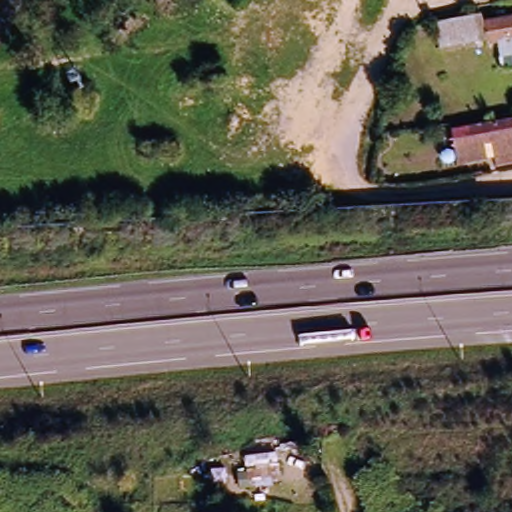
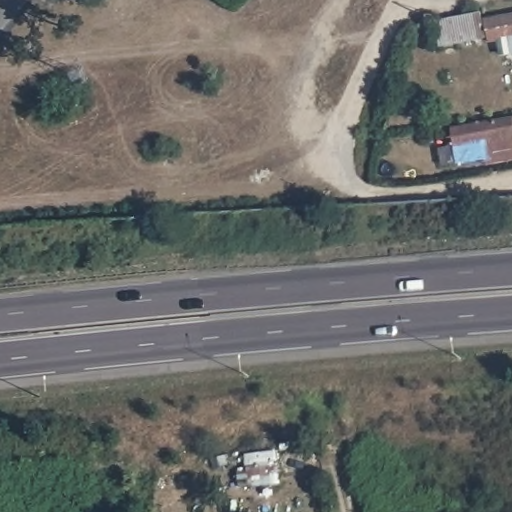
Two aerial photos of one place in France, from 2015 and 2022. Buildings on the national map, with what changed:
unchanged [(512,22),(512,44),(490,47),(485,27),(512,22)]
unchanged [(512,114),(512,135),(484,140),(486,150),(472,153),(471,143),(455,146),(451,125),(512,114)]

